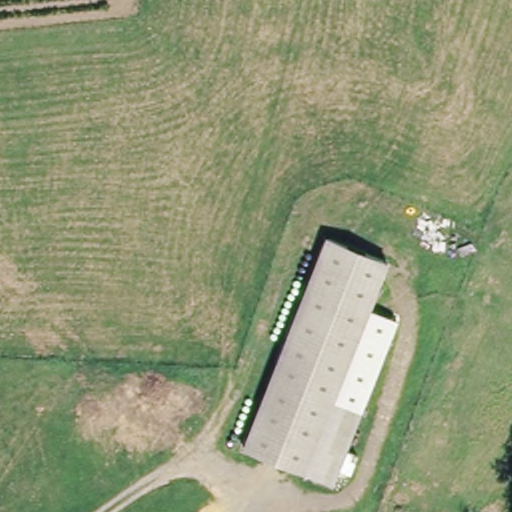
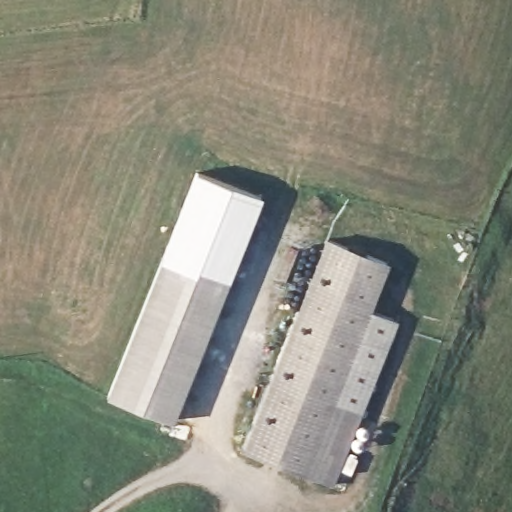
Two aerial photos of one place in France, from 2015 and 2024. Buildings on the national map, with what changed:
new [(161,255),(194,171),(262,197),(228,281),(161,255)]
unchanged [(245,449),(322,240),(384,261),(334,402),(362,413),(337,482),(271,459),(245,449)]
new [(106,397),(161,255),(228,281),(173,421),(106,397)]
unchanged [(334,402),(368,308),(398,320),(362,413),(334,402)]

